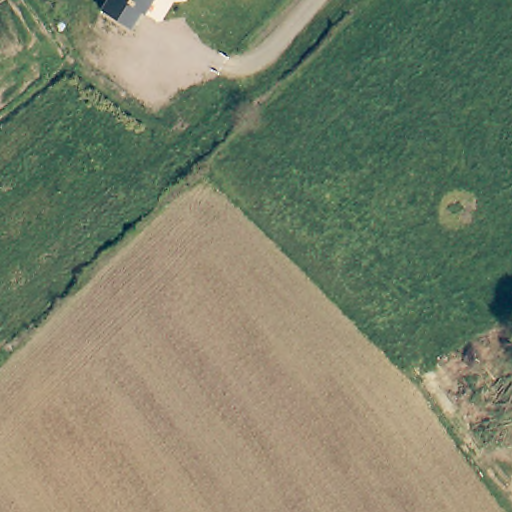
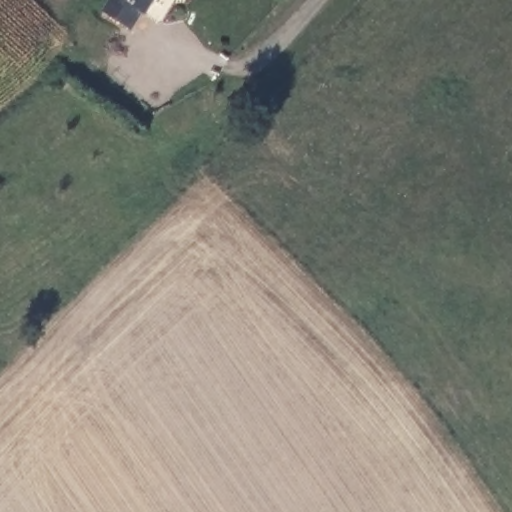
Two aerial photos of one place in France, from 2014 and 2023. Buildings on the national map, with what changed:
unchanged [(108,0),(152,0),(146,10),(144,9),(133,27),(103,9),(108,0)]

